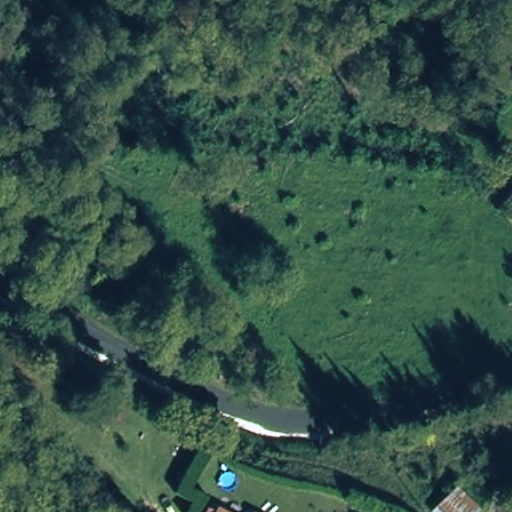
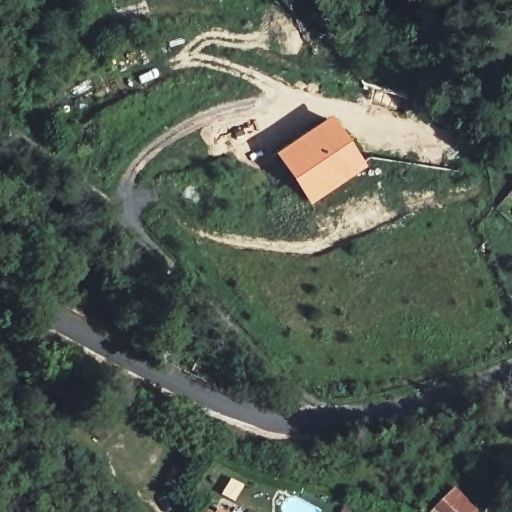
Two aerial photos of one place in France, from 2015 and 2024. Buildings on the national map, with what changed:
new [(329,115),(365,166),(310,205),(274,152),(329,115)]
new [(480,511),(479,512),(433,512),(454,488),(480,511)]
demolished [(445,512),(450,506),(464,492),(482,512),(445,512)]

